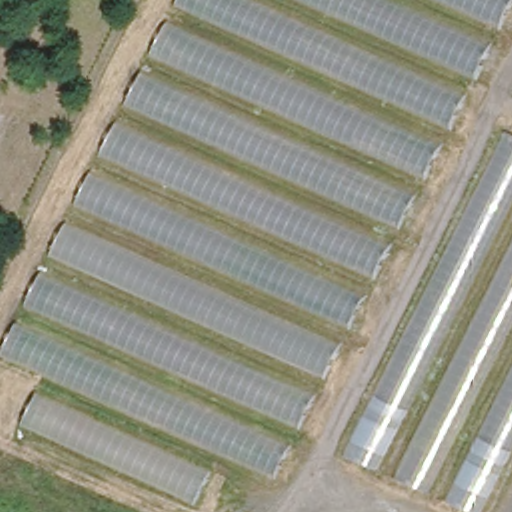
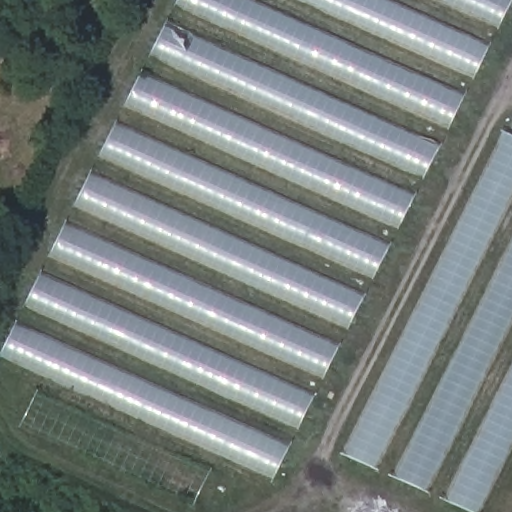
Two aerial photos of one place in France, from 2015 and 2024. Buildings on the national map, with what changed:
unchanged [(219,457),(198,505),(21,427),(43,376),(1,357),(179,0),(512,0),(512,3),(275,481),(219,457)]
unchanged [(343,457),(506,131),(512,134),(512,450),(481,512),(464,512),(343,457)]

